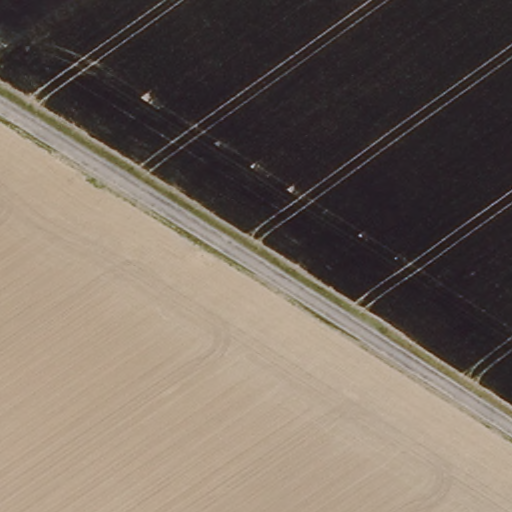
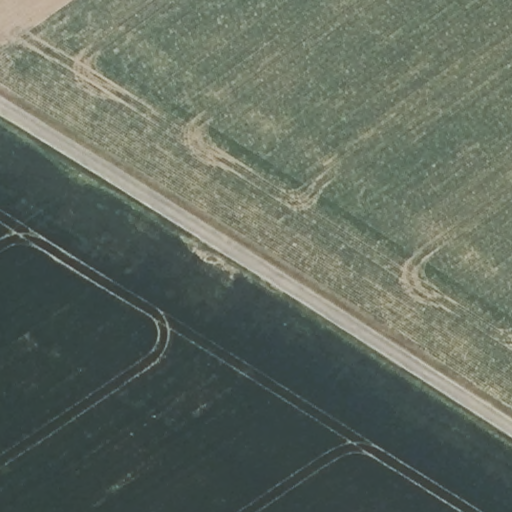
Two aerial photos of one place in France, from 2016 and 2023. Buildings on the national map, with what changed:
[]

